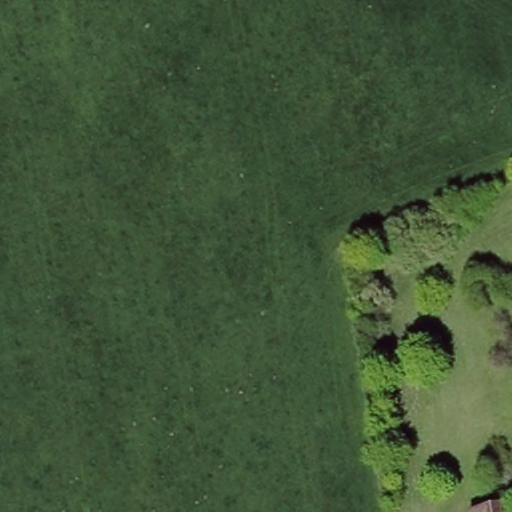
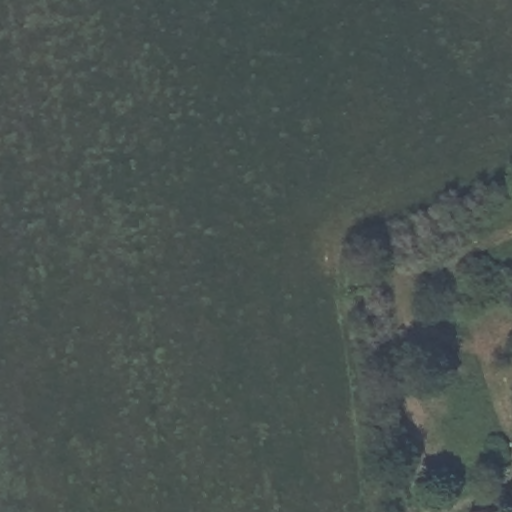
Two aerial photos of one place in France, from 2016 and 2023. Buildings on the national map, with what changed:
unchanged [(470,512),(512,506),(512,512),(470,512)]

